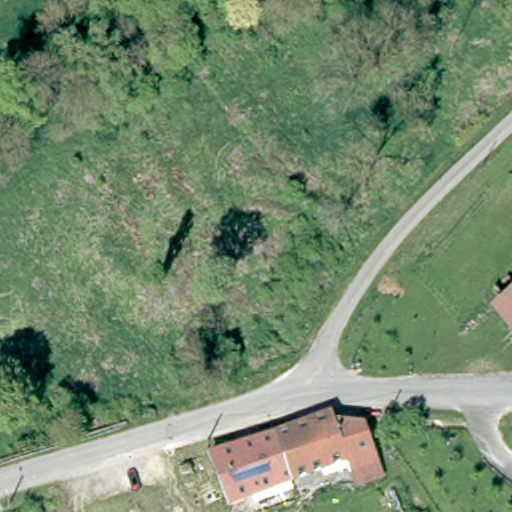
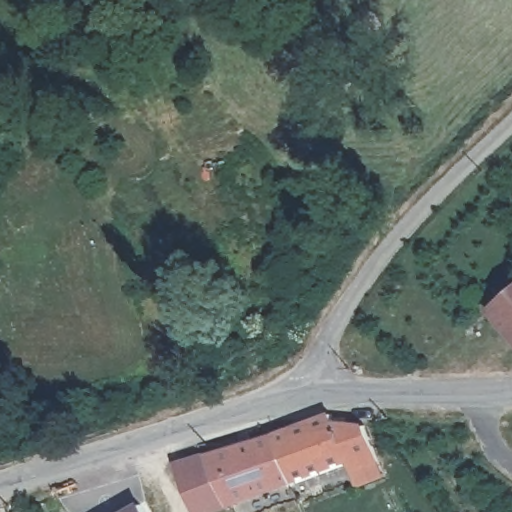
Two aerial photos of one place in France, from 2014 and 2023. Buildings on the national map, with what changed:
unchanged [(492,310),(512,293),(512,333),(492,310)]
unchanged [(353,485),(348,471),(343,460),(288,481),(272,431),(328,415),(341,420),(356,422),(361,422),(377,460),(382,474),(353,485)]
unchanged [(226,504),(206,450),(272,431),(288,481),(226,504)]
new [(226,504),(208,512),(193,512),(173,459),(206,450),(226,504)]
new [(118,512),(140,500),(147,512),(118,512)]

